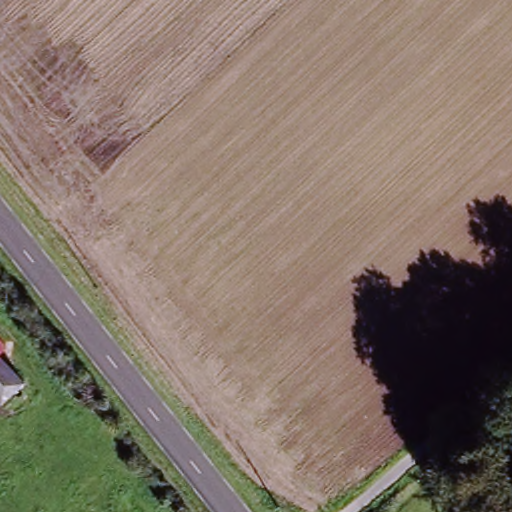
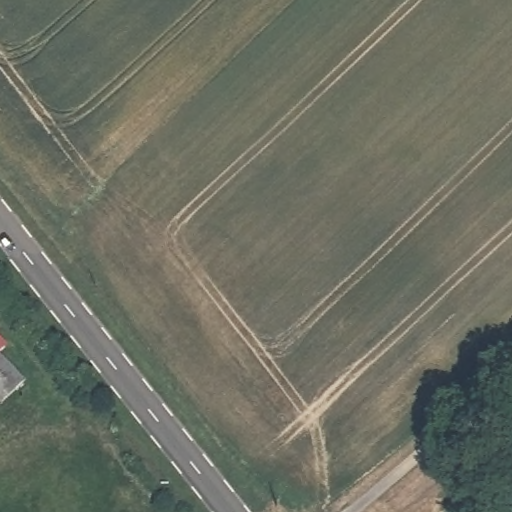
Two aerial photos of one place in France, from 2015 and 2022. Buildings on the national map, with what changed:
unchanged [(0,393),(0,369),(11,382),(0,393)]

